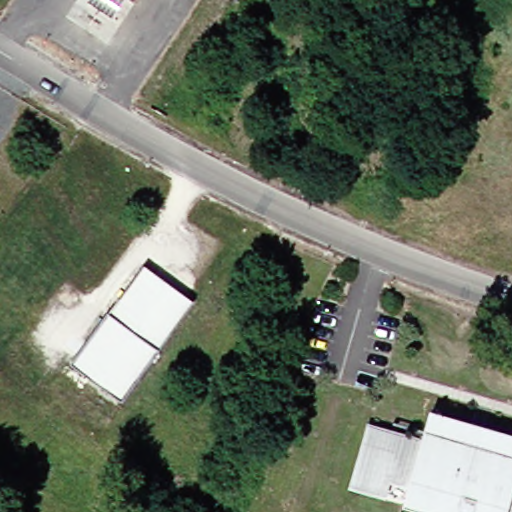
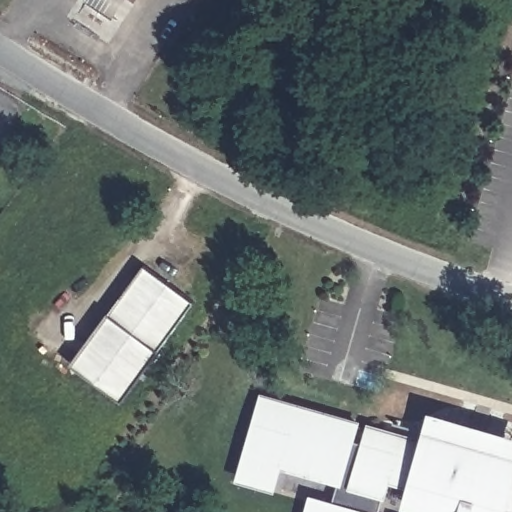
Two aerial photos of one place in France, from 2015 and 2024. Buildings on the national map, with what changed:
unchanged [(122,0),(113,15),(90,0),(122,0)]
unchanged [(199,302),(125,402),(76,365),(150,265),(199,302)]
new [(356,441),(366,445),(354,489),(383,497),(379,512),(307,512),(311,495),(336,502),(341,485),(285,469),(277,491),(237,480),(262,392),(362,422),(356,441)]
unchanged [(512,441),(512,458),(434,436),(439,420),(512,441)]
unchanged [(430,501),(426,493),(390,483),(386,498),(354,489),(370,430),(424,445),(427,434),(434,436),(512,458),(512,512),(426,512),(430,501)]

